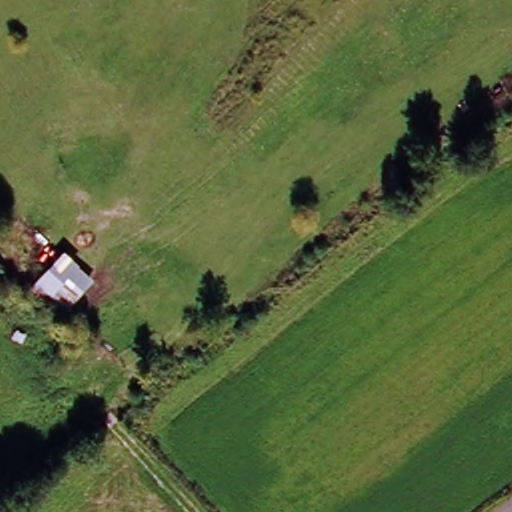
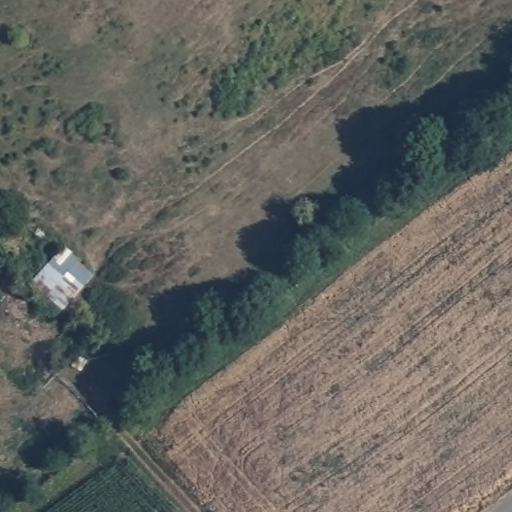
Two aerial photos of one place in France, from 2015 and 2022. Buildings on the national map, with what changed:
unchanged [(75,288),(62,303),(35,279),(50,262),(75,288)]

